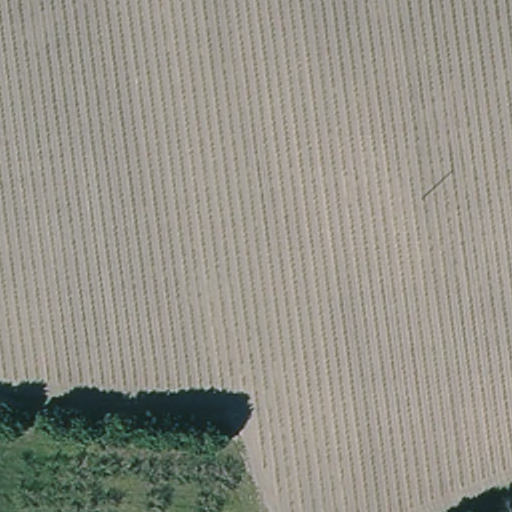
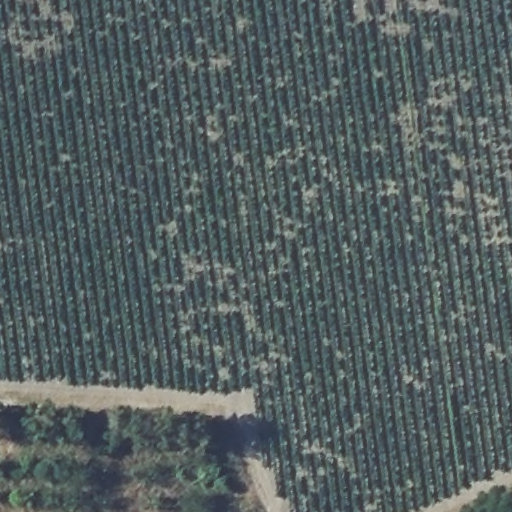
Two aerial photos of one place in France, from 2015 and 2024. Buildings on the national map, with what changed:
[]

